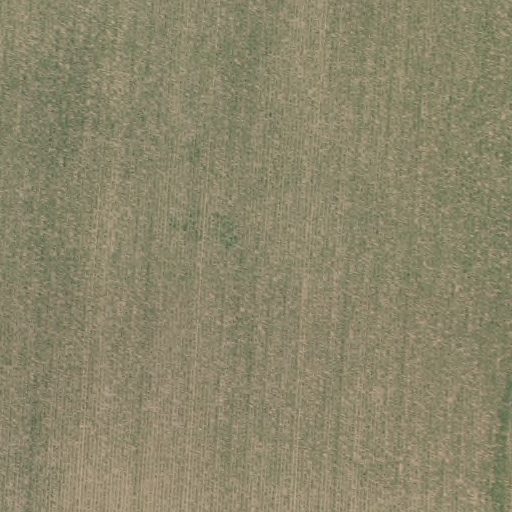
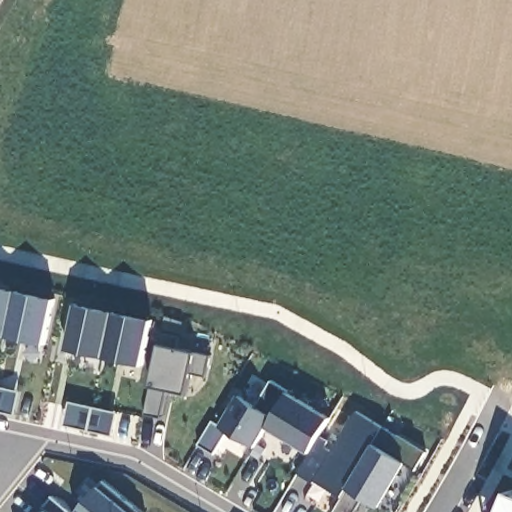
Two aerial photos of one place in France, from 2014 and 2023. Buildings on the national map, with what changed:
new [(55,299),(45,345),(0,335),(0,287),(55,299)]
new [(76,304),(152,321),(142,366),(67,349),(76,304)]
new [(152,386),(160,345),(162,333),(180,337),(178,348),(195,352),(210,357),(205,377),(191,372),(186,393),(166,389),(160,417),(145,413),(152,386)]
new [(220,427),(237,395),(255,406),(272,381),(288,391),(330,417),(321,435),(336,447),(357,412),(426,453),(416,470),(407,463),(381,507),(363,497),(354,512),(334,512),(342,497),(300,472),(312,452),(267,427),(254,447),(227,430),(213,453),(199,443),(212,421),(220,427)]
new [(20,391),(15,415),(0,411),(0,387),(20,391)]
new [(71,402),(117,413),(113,435),(66,425),(71,402)]
new [(104,481),(143,512),(78,512),(98,487),(104,481)]
new [(512,491),(512,512),(503,512),(511,491),(512,491)]
new [(52,497),(72,512),(45,512),(47,510),(52,497)]

